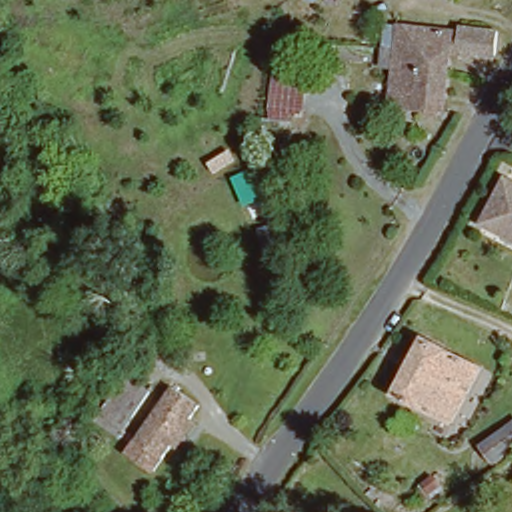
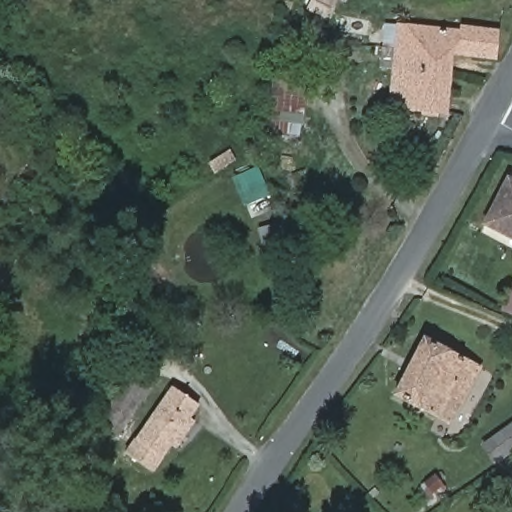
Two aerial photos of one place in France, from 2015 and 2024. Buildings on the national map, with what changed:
unchanged [(462,20),(503,24),(502,44),(501,55),(494,54),(457,51),(449,109),(393,103),(405,20),(462,26),(462,20)]
unchanged [(314,49),(305,113),(289,111),(288,120),(268,116),(278,43),(314,49)]
unchanged [(512,178),(512,236),(483,221),(510,177),(512,178)]
unchanged [(481,368),(454,421),(397,389),(425,339),(481,368)]
unchanged [(123,424),(105,409),(127,374),(152,389),(123,424)]
unchanged [(175,384),(200,405),(190,417),(197,422),(176,447),(170,443),(149,469),(122,449),(175,384)]
unchanged [(512,420),(512,454),(495,467),(481,444),(512,420)]

